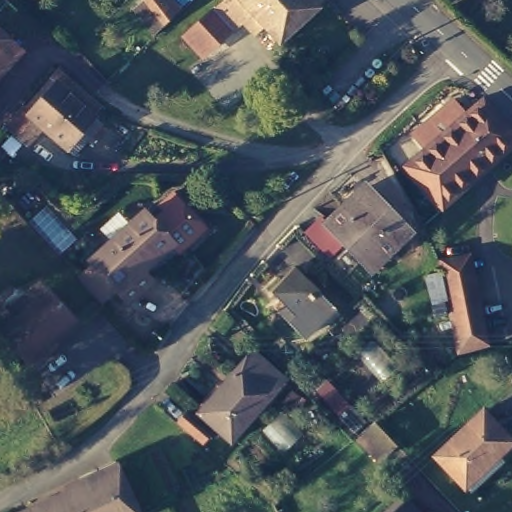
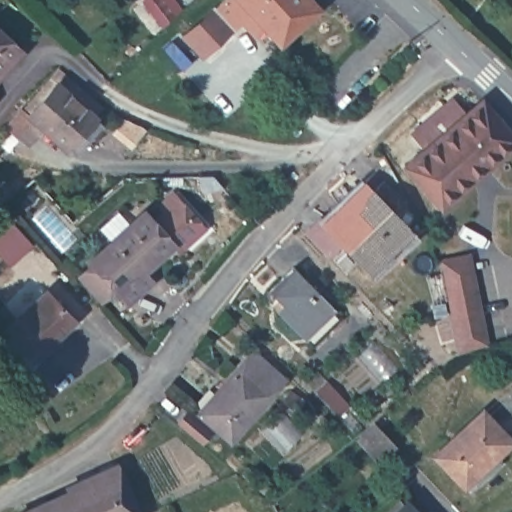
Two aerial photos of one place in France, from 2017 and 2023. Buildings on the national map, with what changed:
unchanged [(148,2),(150,0),(171,0),(180,10),(167,23),(155,36),(135,16),(148,2)]
unchanged [(283,38),(275,29),(266,36),(260,29),(250,37),(221,4),(225,0),(323,0),(323,1),(283,38)]
unchanged [(208,14),(230,31),(202,60),(183,37),(208,14)]
unchanged [(0,78),(0,31),(23,54),(0,78)]
unchanged [(78,153),(28,119),(50,86),(100,121),(78,153)]
unchanged [(512,134),(512,148),(441,208),(404,166),(484,100),(512,134)]
unchanged [(360,186),(403,229),(370,263),(326,220),(360,186)]
unchanged [(78,275),(97,260),(95,256),(150,208),(177,241),(147,268),(153,275),(127,296),(119,286),(100,302),(78,275)]
unchanged [(443,258),(474,252),(478,270),(492,344),(460,351),(446,278),(443,258)]
unchanged [(335,307),(305,339),(282,315),(289,308),(271,291),(295,268),(335,307)]
unchanged [(47,351),(50,354),(31,371),(0,338),(0,336),(47,292),(76,323),(47,351)]
unchanged [(272,391),(235,435),(203,408),(241,363),(272,391)]
unchanged [(485,410),(512,441),(512,442),(500,453),(505,463),(471,492),(436,450),(485,410)]
unchanged [(205,435),(196,447),(173,427),(182,416),(205,435)]
unchanged [(20,510),(122,464),(125,462),(125,463),(148,512),(147,512),(21,512),(20,510)]
unchanged [(409,506),(414,512),(401,512),(409,506)]

